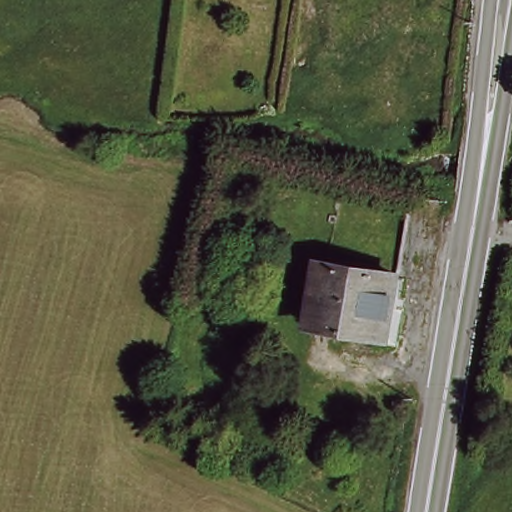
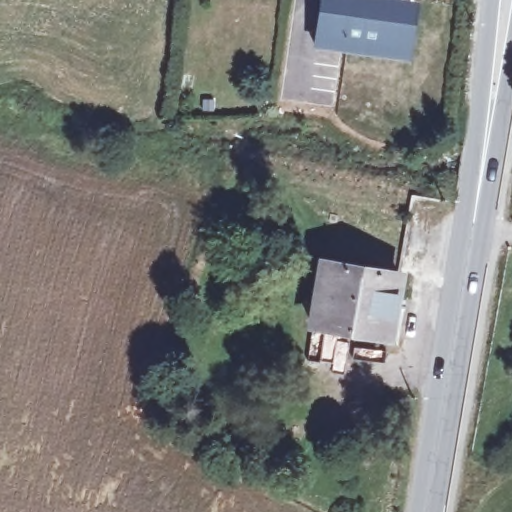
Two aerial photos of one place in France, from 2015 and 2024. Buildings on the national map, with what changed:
new [(417,0),(409,60),(312,46),(318,0),(417,0)]
unchanged [(402,278),(393,339),(309,327),(320,264),(402,278)]

